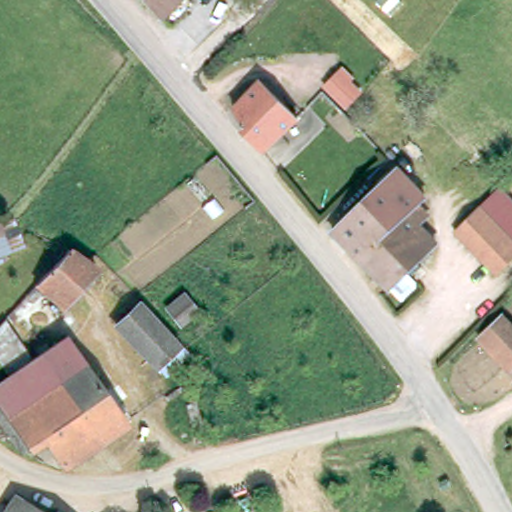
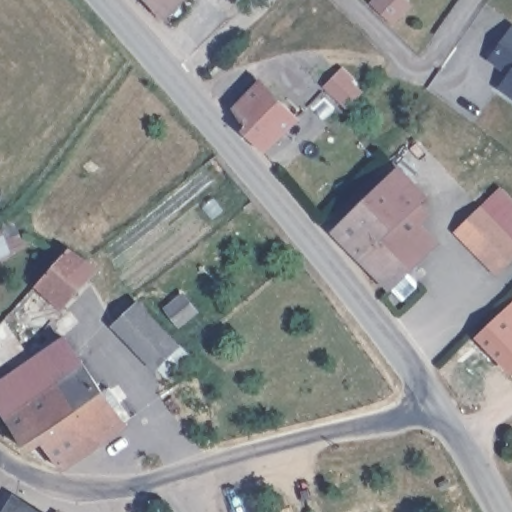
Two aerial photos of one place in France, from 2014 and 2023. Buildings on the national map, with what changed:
unchanged [(166,14),(155,0),(181,0),(166,14)]
new [(507,74),(487,60),(512,26),(512,98),(498,88),(507,74)]
unchanged [(348,103),(343,97),(335,87),(330,81),(337,76),(344,70),(352,81),(354,82),(362,92),(354,99),(348,103)]
unchanged [(227,110),(260,79),(292,113),(257,145),(227,110)]
unchanged [(427,220),(420,225),(419,226),(435,247),(383,289),(333,228),(402,171),(403,170),(428,200),(419,209),(427,220)]
unchanged [(512,193),(512,261),(500,270),(466,230),(507,188),(512,193)]
unchanged [(10,219),(17,222),(26,245),(0,255),(0,223),(10,219)]
unchanged [(66,250),(72,254),(77,256),(82,260),(84,262),(94,270),(60,308),(40,290),(37,292),(32,289),(66,250)]
unchanged [(174,320),(160,305),(177,292),(189,310),(174,320)]
unchanged [(149,362),(148,363),(109,322),(122,310),(132,301),(170,342),(172,340),(182,350),(163,368),(158,372),(149,362)]
unchanged [(500,313),(512,325),(512,367),(507,372),(475,340),(500,313)]
unchanged [(35,366),(12,380),(0,363),(0,330),(8,321),(36,361),(35,366)]
unchanged [(0,419),(0,407),(1,406),(0,405),(0,388),(12,380),(35,366),(36,361),(68,340),(107,393),(112,390),(135,420),(128,425),(130,427),(67,471),(47,442),(34,452),(32,450),(25,455),(0,419)]
unchanged [(47,512),(6,512),(18,492),(47,512)]
unchanged [(72,512),(49,512),(55,500),(72,512)]

